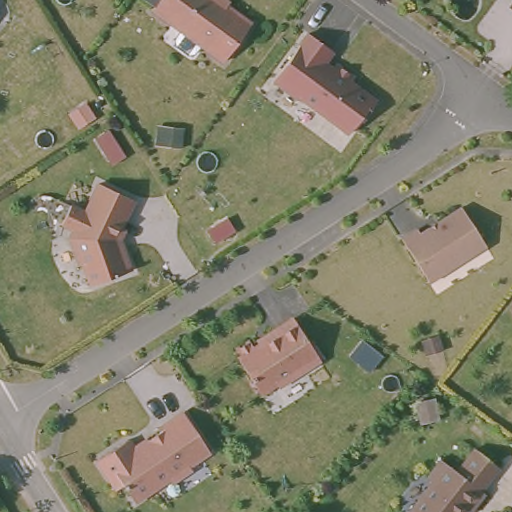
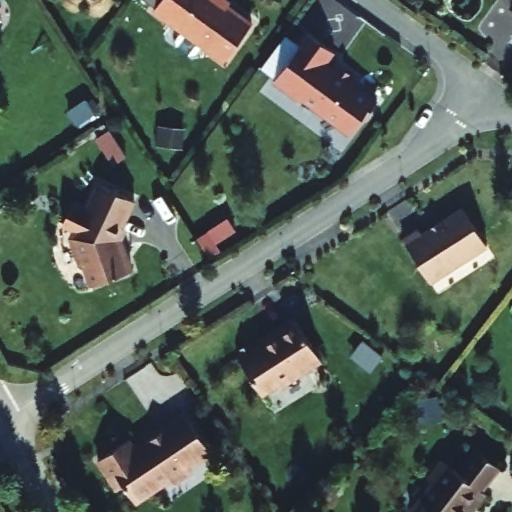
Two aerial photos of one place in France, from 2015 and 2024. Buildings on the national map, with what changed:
unchanged [(199,44),(193,51),(186,53),(175,44),(174,38),(179,29),(154,10),(162,0),(228,0),(234,4),(231,9),(252,24),(224,62),(199,44)]
unchanged [(378,100),(366,118),(363,116),(351,133),(301,96),(299,99),(274,81),(309,33),(334,51),(325,63),(333,68),(337,63),(356,77),(352,82),(378,100)]
unchanged [(162,128),(183,130),(181,148),(160,145),(162,128)]
unchanged [(111,161),(97,138),(108,131),(123,154),(111,161)]
unchanged [(124,247),(133,270),(93,285),(84,264),(81,265),(73,242),(77,240),(73,229),(63,224),(71,206),(85,213),(93,197),(99,184),(103,185),(134,200),(121,227),(119,226),(115,234),(121,248),(124,247)]
unchanged [(430,281),(403,239),(418,229),(421,233),(462,207),(487,244),(430,281)]
unchanged [(279,387),(278,384),(261,394),(238,358),(241,357),(236,349),(250,341),(254,348),(277,333),(274,329),(294,318),(321,360),(279,387)]
unchanged [(419,403),(437,401),(439,418),(419,419),(419,403)]
unchanged [(104,479),(93,460),(120,442),(128,454),(144,444),(143,441),(155,433),(153,430),(178,413),(205,453),(183,467),(186,471),(171,481),(164,479),(129,503),(118,485),(111,489),(104,479)]
unchanged [(471,511),(469,509),(466,512),(411,512),(434,482),(428,478),(442,459),(458,472),(476,448),(499,467),(482,490),(485,493),(471,511)]

